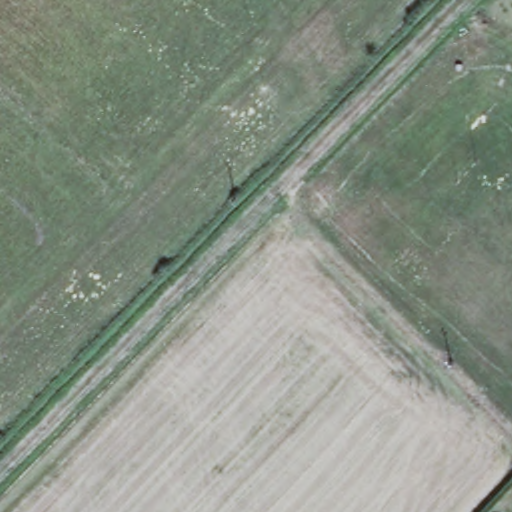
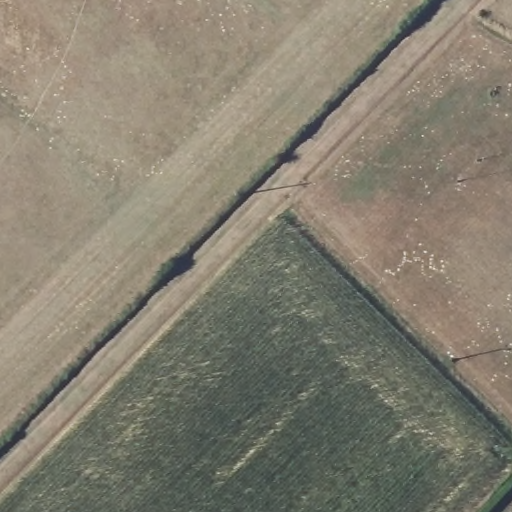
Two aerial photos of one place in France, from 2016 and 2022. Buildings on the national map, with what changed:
[]

